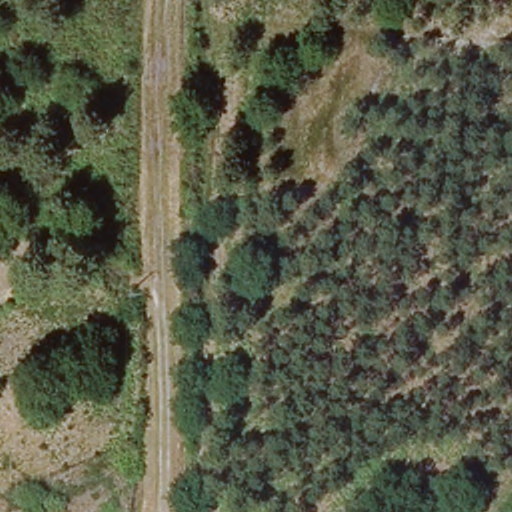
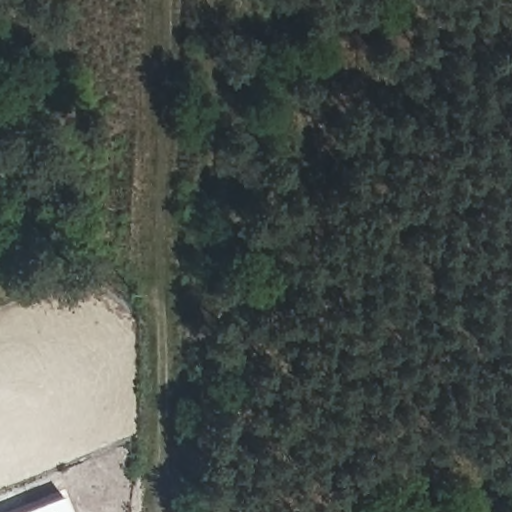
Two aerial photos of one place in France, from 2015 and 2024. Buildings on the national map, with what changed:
new [(69,512),(20,512),(63,495),(69,512)]

